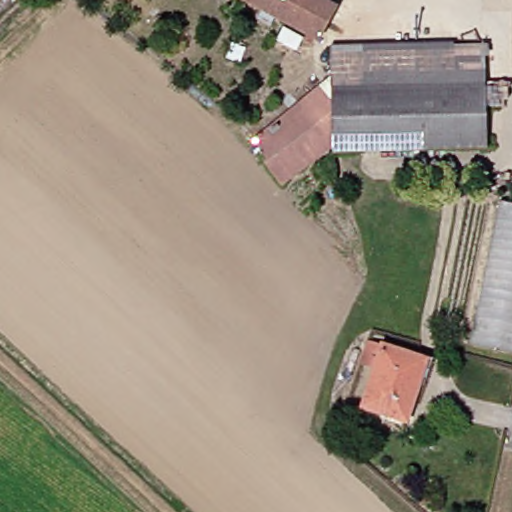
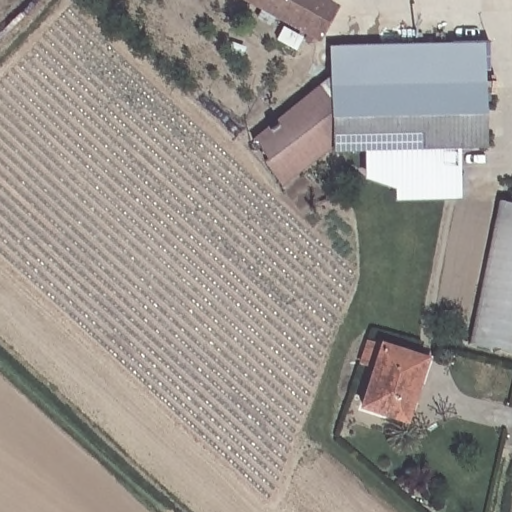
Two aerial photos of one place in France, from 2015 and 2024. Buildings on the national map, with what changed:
unchanged [(226,0),(323,0),(329,3),(310,41),(226,0)]
unchanged [(329,45),(484,40),(488,150),(476,150),(475,65),(351,69),(351,87),(331,88),(329,45)]
unchanged [(326,156),(326,151),(272,187),(243,140),(312,88),(320,100),(320,89),(331,88),(351,87),(351,69),(475,65),(476,150),(326,156)]
new [(394,201),(394,190),(365,180),(364,155),(460,150),(461,200),(394,201)]
unchanged [(512,345),(475,337),(503,207),(512,209),(512,345)]
unchanged [(402,425),(360,416),(368,383),(352,377),(364,350),(415,358),(402,425)]

